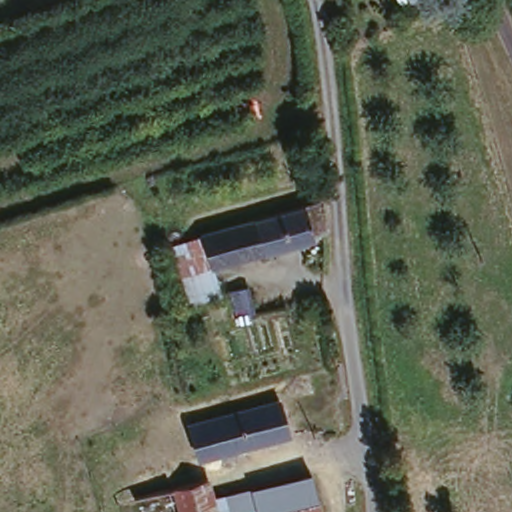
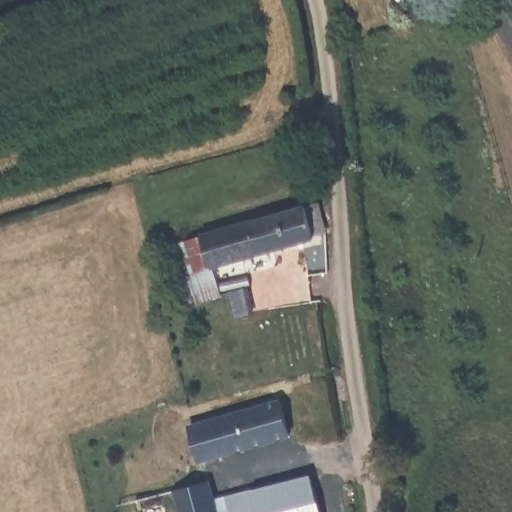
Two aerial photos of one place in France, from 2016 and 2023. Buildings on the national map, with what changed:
unchanged [(296,203),(310,199),(316,225),(303,230),(305,234),(204,264),(195,230),(296,201),(296,203)]
unchanged [(204,264),(211,292),(182,301),(169,261),(154,266),(147,244),(195,230),(204,264)]
unchanged [(244,288),(251,313),(238,318),(232,292),(244,288)]
unchanged [(196,465),(187,431),(276,406),(282,440),(220,459),(196,465)]
unchanged [(314,512),(212,512),(211,506),(307,479),(314,512)]
unchanged [(212,512),(172,512),(168,496),(171,496),(206,486),(211,506),(212,512)]

